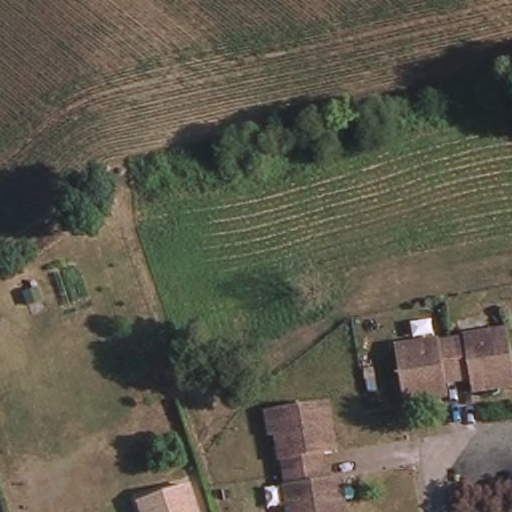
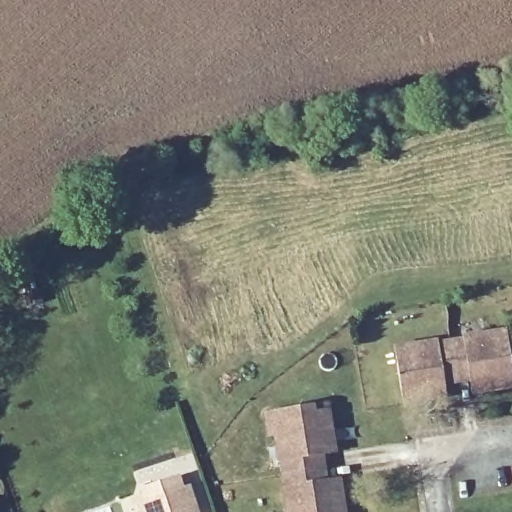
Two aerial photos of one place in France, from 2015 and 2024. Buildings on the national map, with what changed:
unchanged [(426,401),(402,405),(392,348),(433,340),(433,344),(461,339),(461,335),(505,327),(512,361),(512,386),(495,388),(472,393),(470,383),(470,381),(445,384),(445,388),(447,398),(426,401)]
unchanged [(347,512),(291,512),(284,485),(288,483),(276,431),(271,432),(265,410),(328,400),(333,426),(338,452),(328,453),(326,453),(330,477),(340,474),(343,495),(347,512)]
unchanged [(198,512),(143,512),(140,502),(189,486),(198,512)]

